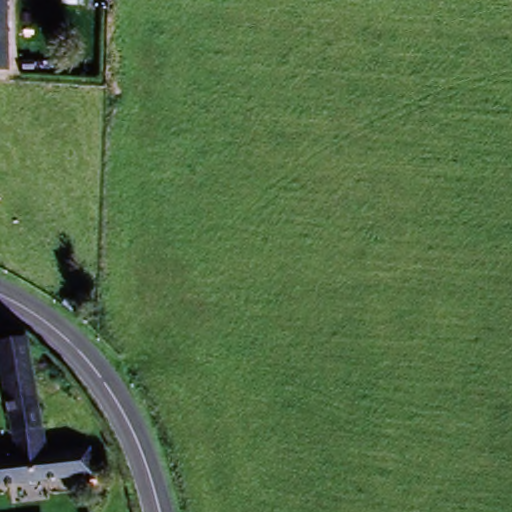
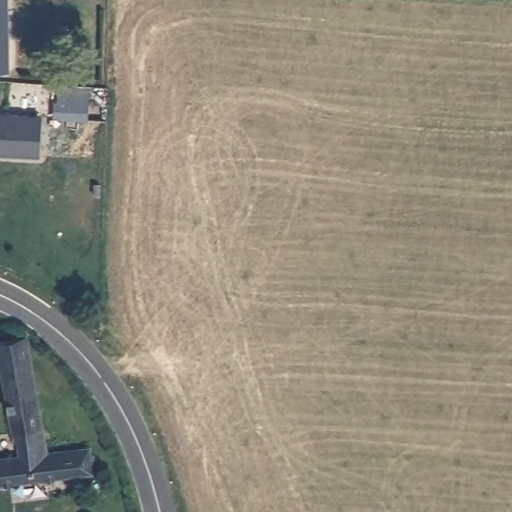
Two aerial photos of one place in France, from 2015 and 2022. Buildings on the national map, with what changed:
unchanged [(61,0),(90,0),(90,8),(61,5),(61,0)]
unchanged [(10,4),(5,73),(0,73),(0,3),(10,4)]
new [(42,116),(40,156),(0,154),(0,113),(42,116)]
unchanged [(16,461),(0,361),(0,345),(32,342),(52,454),(93,452),(93,483),(0,492),(0,463),(16,461)]

